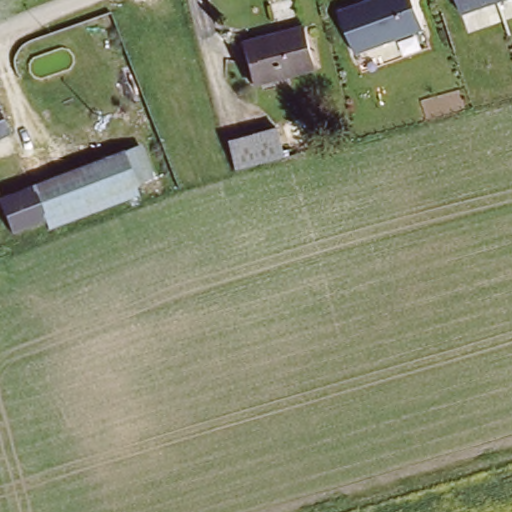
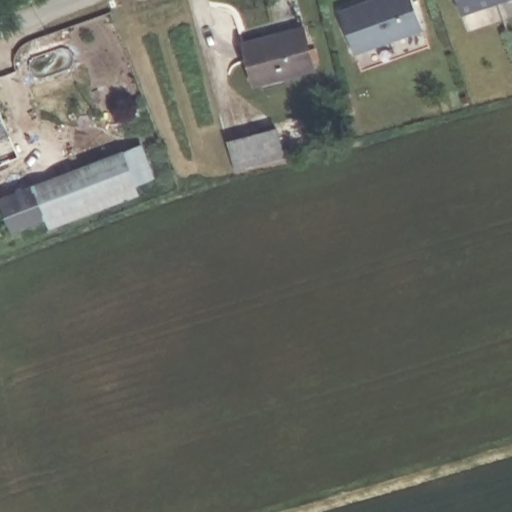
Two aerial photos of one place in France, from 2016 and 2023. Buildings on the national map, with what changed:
unchanged [(412,0),(422,29),(354,53),(337,10),(362,0),(412,0)]
unchanged [(457,0),(509,0),(462,16),(457,0)]
unchanged [(312,30),(322,70),(262,84),(251,44),(312,30)]
unchanged [(17,136),(0,142),(0,107),(5,105),(17,136)]
unchanged [(282,159),(235,172),(227,143),(275,131),(282,159)]
unchanged [(65,179),(150,147),(162,178),(143,185),(147,195),(80,219),(65,179)]
unchanged [(80,219),(57,227),(55,222),(42,188),(65,179),(80,219)]
unchanged [(0,231),(0,189),(6,187),(10,200),(42,188),(55,222),(3,240),(0,231)]

